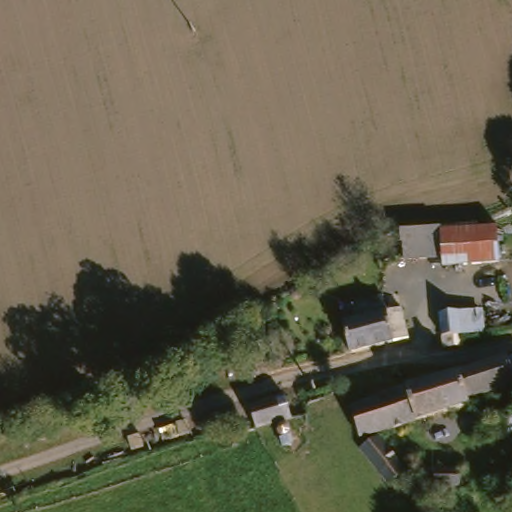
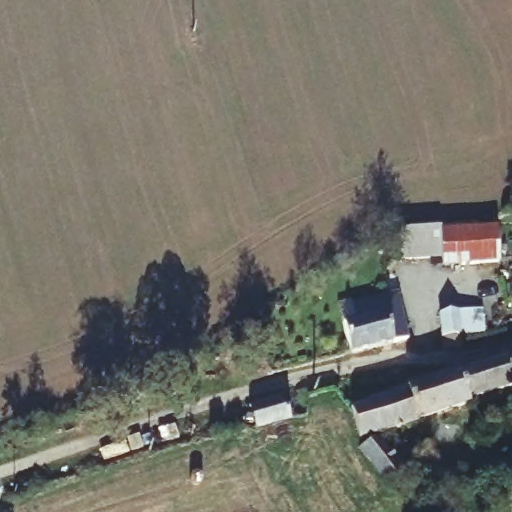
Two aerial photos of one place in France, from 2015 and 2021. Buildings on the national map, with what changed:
unchanged [(441,266),(440,255),(404,256),(403,228),(499,221),(503,262),(441,266)]
unchanged [(409,331),(354,349),(340,317),(354,312),(348,294),(379,284),(385,300),(396,296),(409,331)]
unchanged [(464,342),(445,343),(438,303),(457,303),(464,342)]
unchanged [(512,375),(512,386),(361,437),(350,406),(402,383),(507,354),(512,353),(512,375)]
unchanged [(299,418),(264,430),(255,402),(287,392),(299,418)]
unchanged [(408,467),(388,479),(360,445),(387,434),(408,467)]
unchanged [(496,486),(468,492),(465,475),(491,471),(496,486)]

